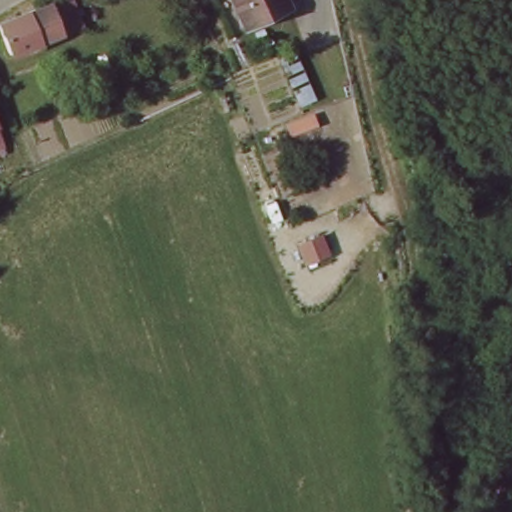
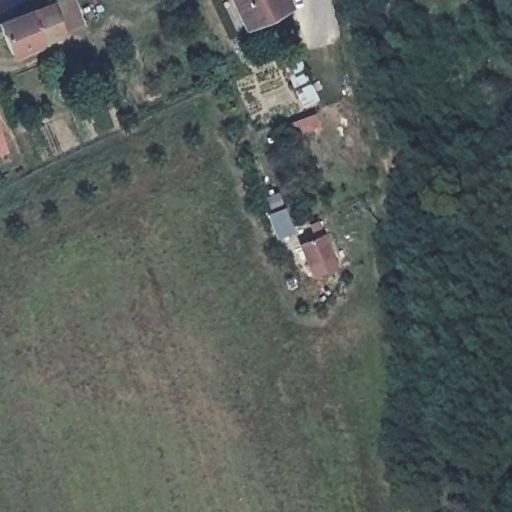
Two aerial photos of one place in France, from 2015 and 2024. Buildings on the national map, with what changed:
unchanged [(250,28),(236,0),(288,0),(293,9),(250,28)]
unchanged [(42,9),(55,3),(69,30),(49,40),(27,50),(8,59),(0,41),(0,29),(12,23),(26,15),(35,13),(41,9),(42,9)]
unchanged [(0,156),(0,124),(7,141),(11,151),(0,156)]

